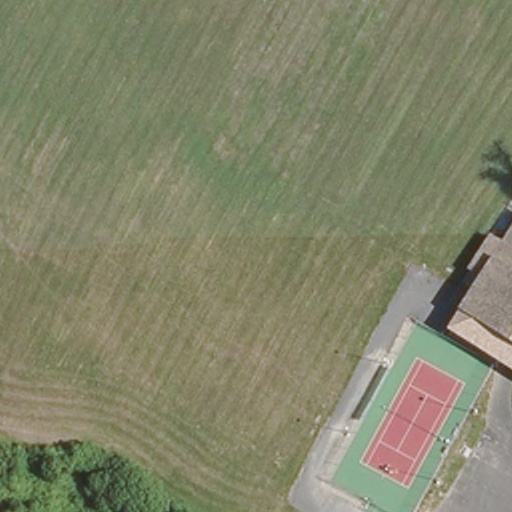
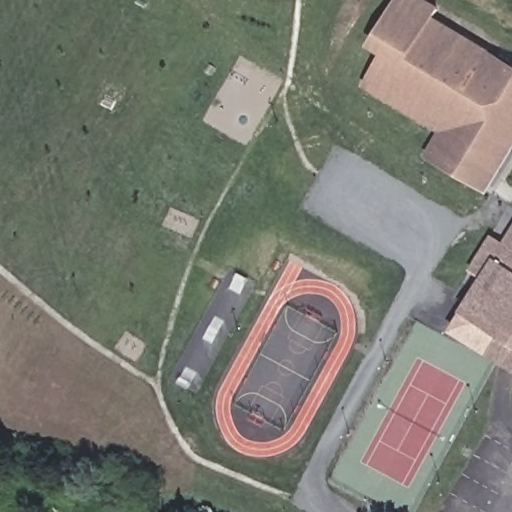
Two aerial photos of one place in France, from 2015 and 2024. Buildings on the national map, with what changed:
new [(421,159),(437,131),(358,85),(378,55),(364,44),(393,0),(424,0),(436,8),(432,17),(512,64),(512,145),(482,194),(421,159)]
unchanged [(512,225),(512,341),(459,308),(512,225)]

